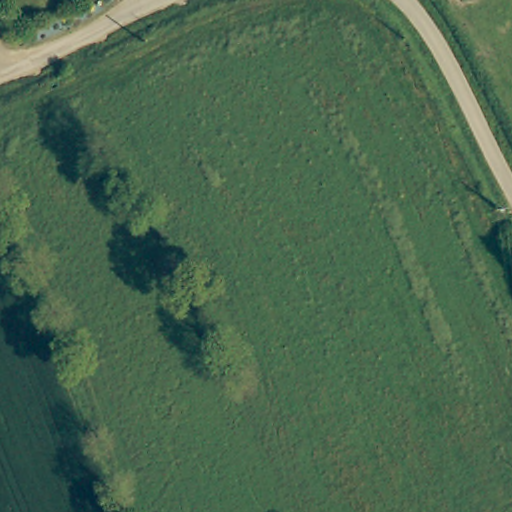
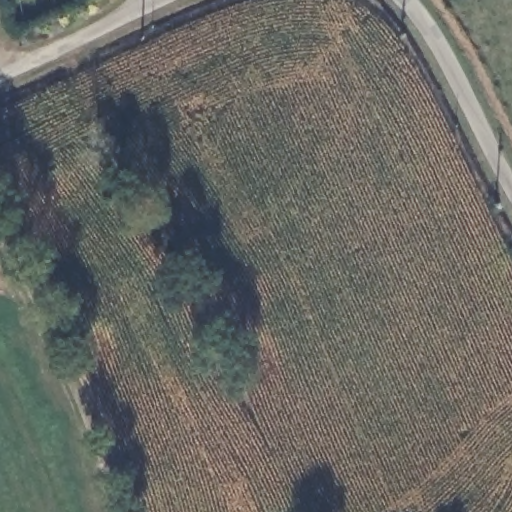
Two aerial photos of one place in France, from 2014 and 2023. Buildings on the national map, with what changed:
[]

